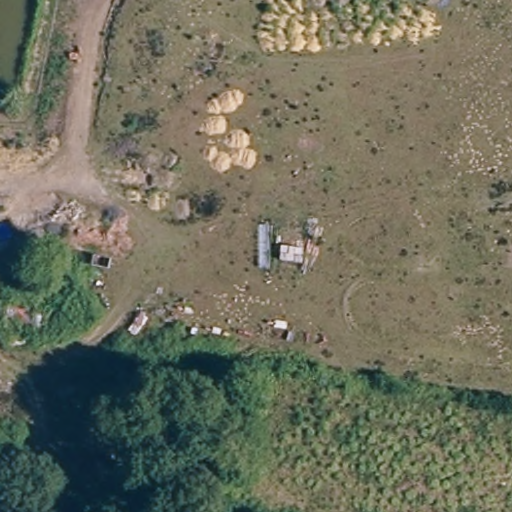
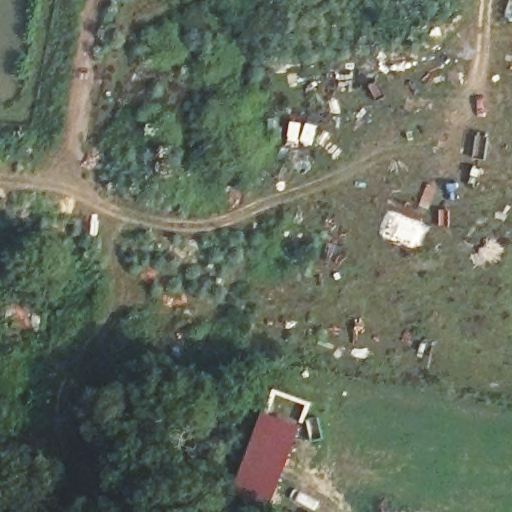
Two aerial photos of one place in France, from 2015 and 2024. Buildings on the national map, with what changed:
new [(261,411),(301,423),(268,508),(233,496),(261,411)]

